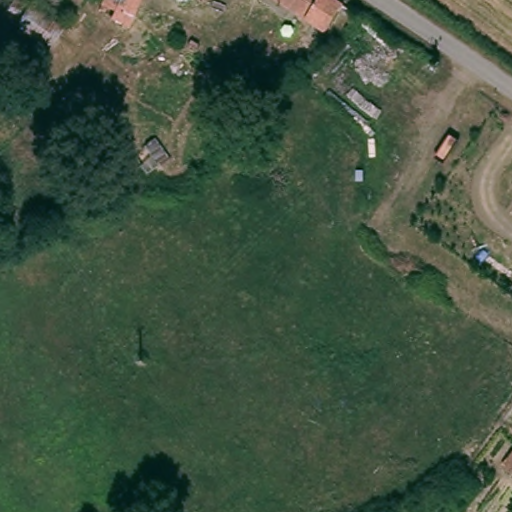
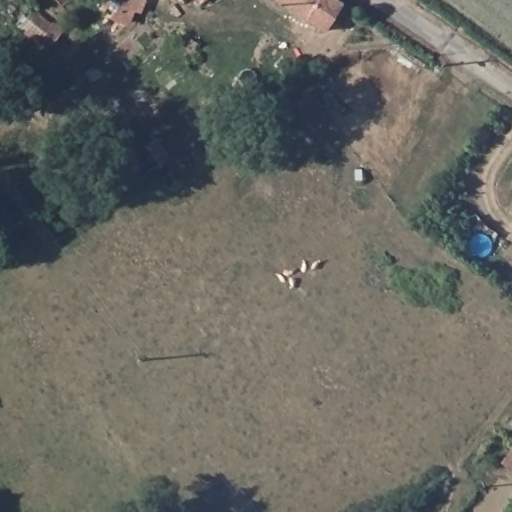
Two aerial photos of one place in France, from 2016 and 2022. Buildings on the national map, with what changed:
unchanged [(86,7),(89,0),(106,0),(101,14),(86,7)]
unchanged [(203,0),(205,0),(204,1),(203,0)]
unchanged [(320,37),(270,0),(328,0),(340,8),(320,37)]
unchanged [(505,467),(512,458),(512,476),(505,467)]

